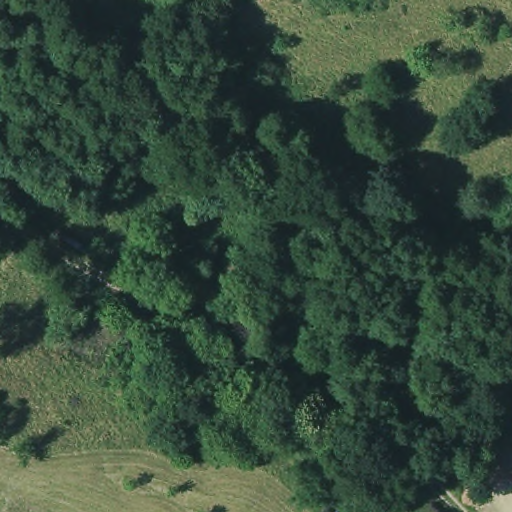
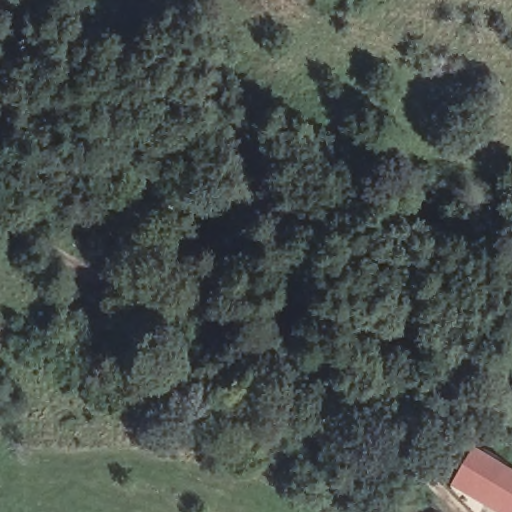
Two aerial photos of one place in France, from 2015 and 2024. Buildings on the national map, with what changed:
unchanged [(217,307),(170,288),(183,261),(225,284),(217,307)]
new [(512,472),(512,512),(491,512),(450,487),(471,449),(512,472)]

